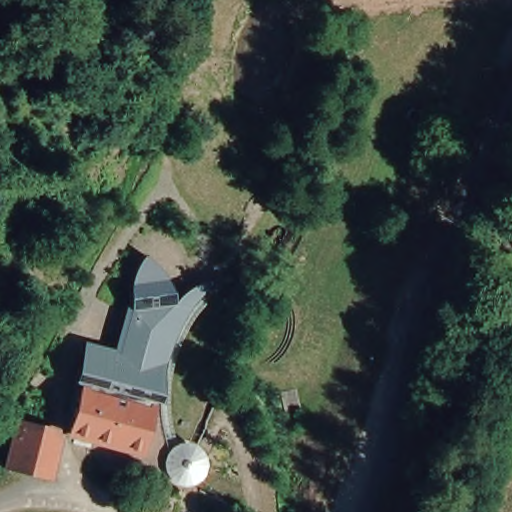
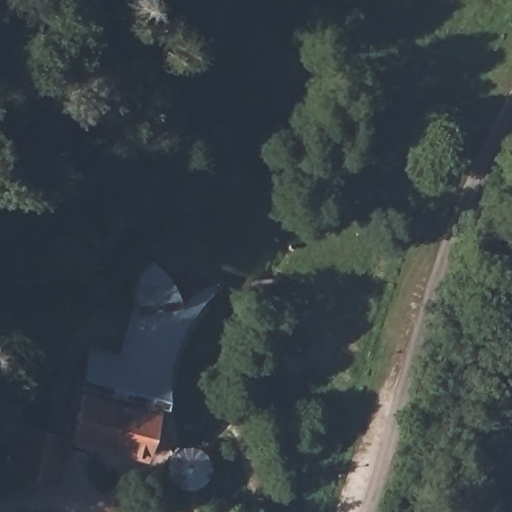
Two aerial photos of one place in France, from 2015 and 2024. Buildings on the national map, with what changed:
unchanged [(77,375),(83,342),(113,349),(134,274),(136,267),(144,257),(153,265),(164,277),(171,290),(173,303),(189,287),(201,280),(216,280),(192,305),(179,325),(170,355),(166,366),(160,397),(77,375)]
unchanged [(63,442),(76,390),(153,406),(141,459),(63,442)]
unchanged [(2,472),(13,422),(63,432),(52,483),(2,472)]
unchanged [(202,487),(197,490),(189,491),(180,490),(172,486),(165,477),(163,467),(166,457),(169,449),(181,445),(189,444),(198,446),(204,452),(209,460),(209,471),(206,481),(202,487)]

